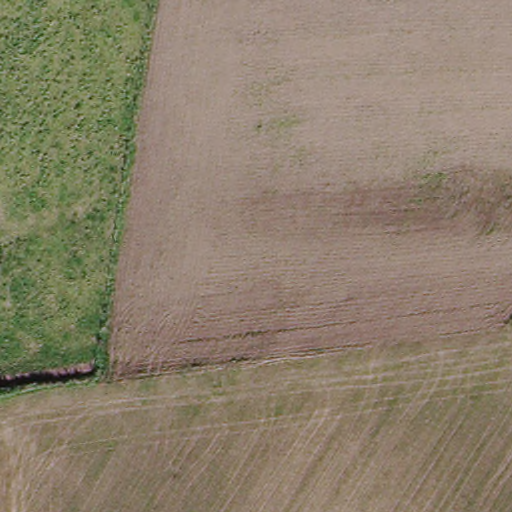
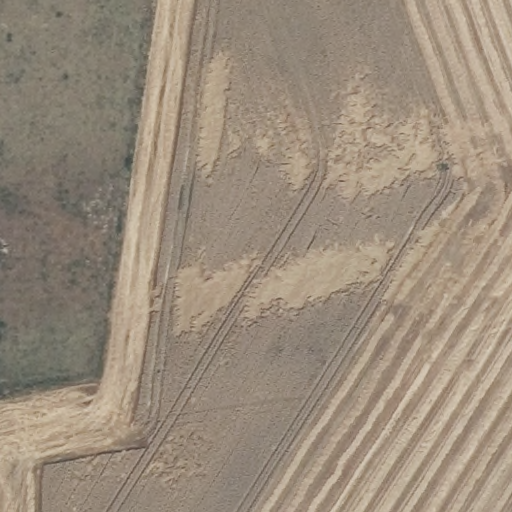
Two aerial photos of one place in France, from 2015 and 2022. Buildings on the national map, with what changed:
[]

